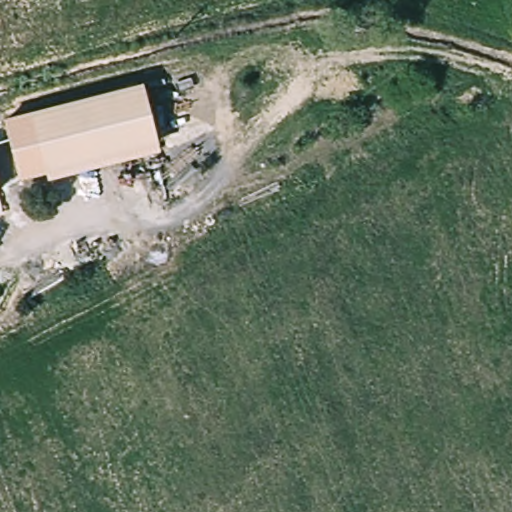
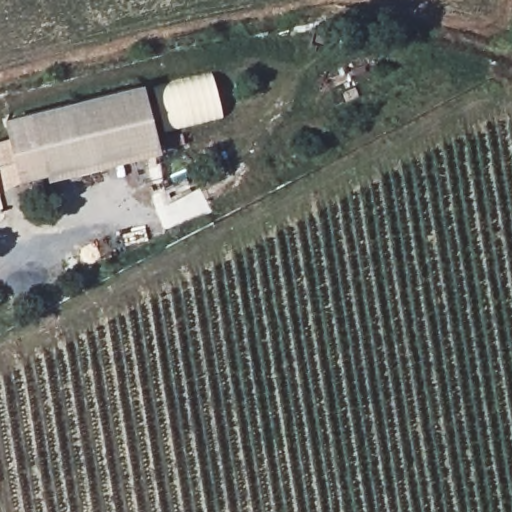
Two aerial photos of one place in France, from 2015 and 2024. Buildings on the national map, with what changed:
new [(163,129),(152,87),(212,71),(223,113),(163,129)]
unchanged [(32,173),(17,115),(127,89),(142,147),(135,149),(52,168),(32,173)]

